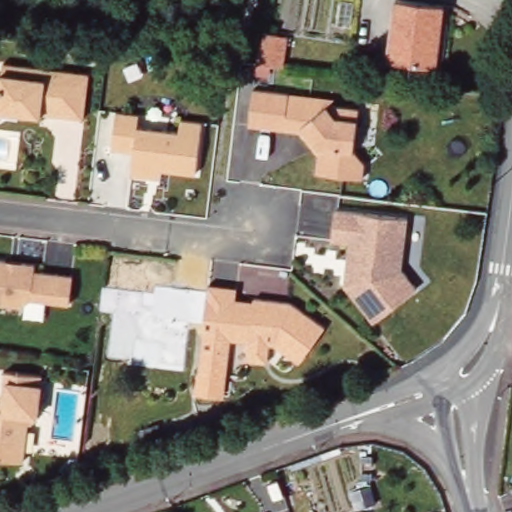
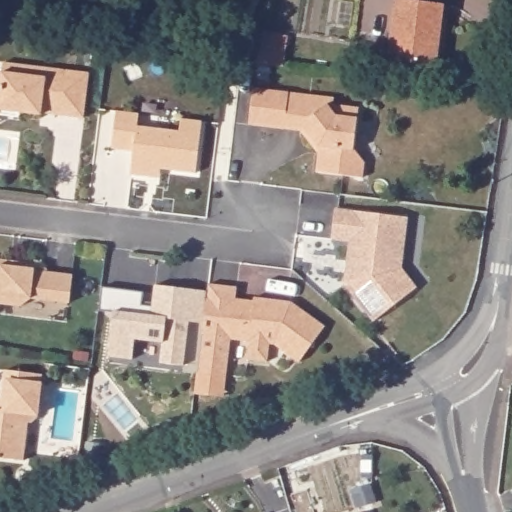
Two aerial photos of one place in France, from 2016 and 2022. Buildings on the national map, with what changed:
unchanged [(403,0),(441,0),(445,0),(439,63),(396,58),(403,0)]
unchanged [(271,35),(289,37),(285,69),(260,66),(271,35)]
unchanged [(2,74),(4,59),(89,72),(85,116),(0,108),(0,74),(2,74)]
unchanged [(336,94),(337,102),(360,106),(355,147),(368,159),(366,173),(322,167),(324,141),(310,127),(254,121),(258,87),(336,94)]
unchanged [(143,110),(143,121),(184,126),(185,115),(205,118),(200,168),(165,165),(164,174),(133,169),(135,150),(116,147),(120,107),(143,110)]
unchanged [(348,282),(355,235),(336,231),(340,204),(410,214),(406,265),(421,285),(376,317),(348,282)]
unchanged [(38,259),(37,265),(77,271),(73,300),(31,295),(30,302),(0,298),(0,256),(38,259)]
unchanged [(196,395),(200,367),(210,282),(240,286),(240,297),(259,299),(260,295),(293,297),(328,325),(303,359),(274,340),(271,360),(250,357),(252,337),(233,335),(230,372),(225,371),(225,396),(196,395)]
new [(115,311),(100,309),(103,286),(142,292),(141,304),(152,306),(155,285),(209,293),(205,324),(189,321),(184,365),(160,362),(163,342),(136,339),(133,359),(110,355),(115,311)]
unchanged [(6,406),(12,367),(47,372),(40,419),(30,417),(27,455),(0,453),(0,406),(6,406)]
unchanged [(263,512),(257,512),(263,510),(263,512)]

